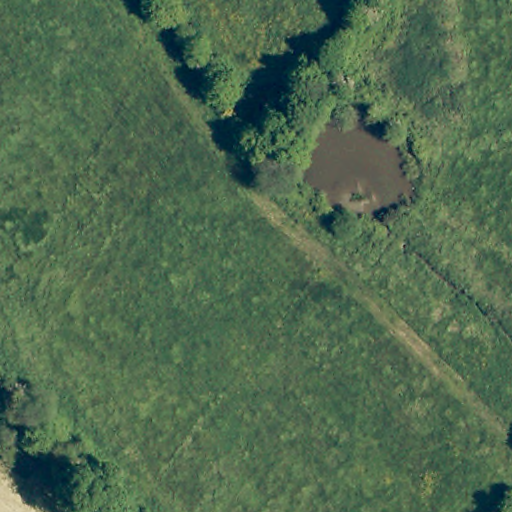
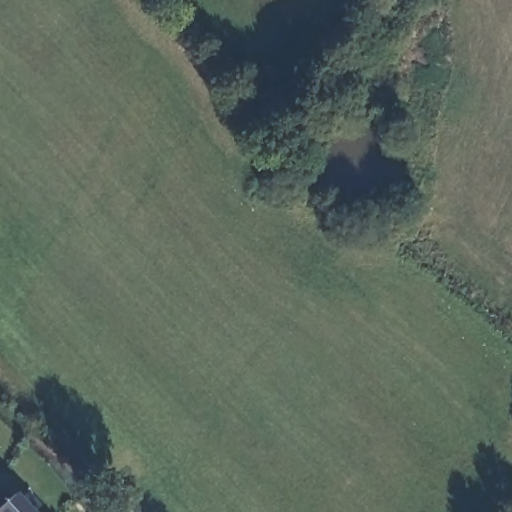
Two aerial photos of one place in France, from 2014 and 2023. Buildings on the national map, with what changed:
new [(34,512),(0,512),(0,511),(16,493),(34,512)]

